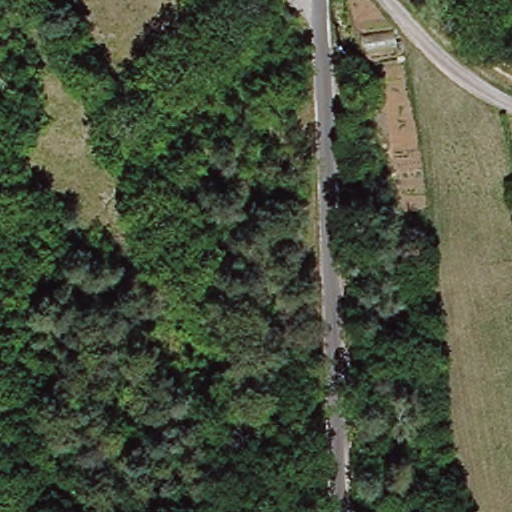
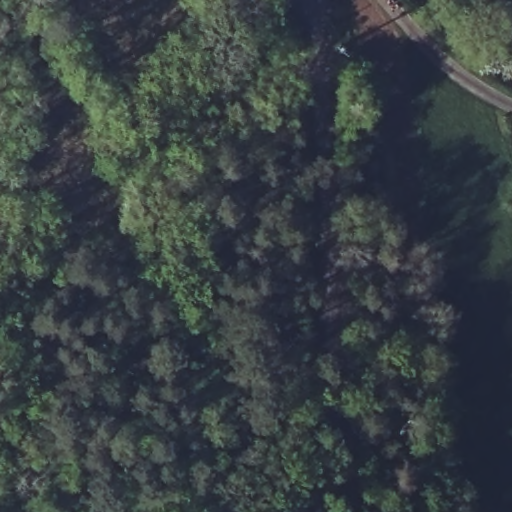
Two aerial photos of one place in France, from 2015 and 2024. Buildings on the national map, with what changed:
[]

